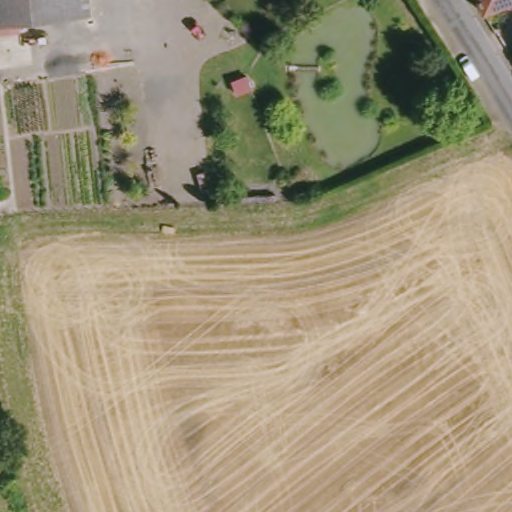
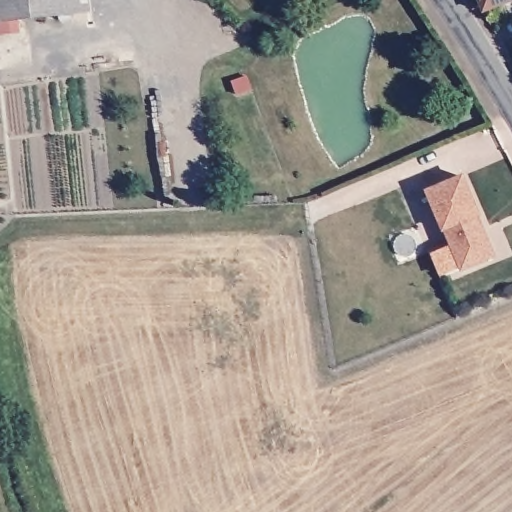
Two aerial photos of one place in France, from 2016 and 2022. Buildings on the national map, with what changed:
unchanged [(0,22),(0,0),(93,0),(94,11),(0,22)]
unchanged [(487,0),(508,0),(489,5),(487,0)]
new [(424,190),(463,175),(479,217),(495,259),(459,273),(441,232),(424,190)]

